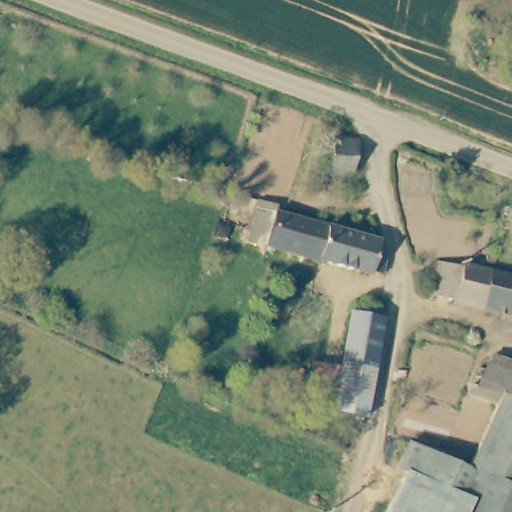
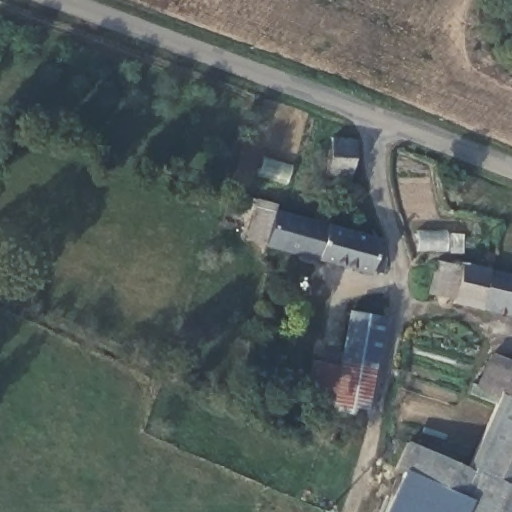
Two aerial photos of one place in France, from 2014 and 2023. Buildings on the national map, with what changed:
unchanged [(334,134),(353,136),(348,174),(324,171),(329,133),(334,134)]
unchanged [(277,206),(276,213),(327,227),(320,261),(247,242),(260,201),(277,206)]
unchanged [(387,249),(389,261),(386,278),(378,277),(371,275),(320,261),(327,227),(379,240),(377,246),(383,247),(387,249)]
unchanged [(456,305),(456,302),(430,296),(437,265),(460,269),(464,266),(494,274),(486,311),(456,305)]
unchanged [(512,317),(486,311),(494,274),(512,277),(512,317)]
unchanged [(386,320),(371,420),(354,418),(342,417),(307,411),(316,365),(343,370),(352,313),(386,320)]
unchanged [(512,416),(507,415),(506,410),(507,405),(510,399),(481,388),(493,356),(512,364),(512,416)]
unchanged [(482,477),(470,471),(497,413),(512,421),(512,490),(509,489),(482,477)]
unchanged [(470,502),(407,472),(401,469),(412,446),(470,471),(482,477),(470,502)]
unchanged [(470,502),(482,477),(509,489),(512,490),(512,512),(389,512),(407,472),(470,502)]

